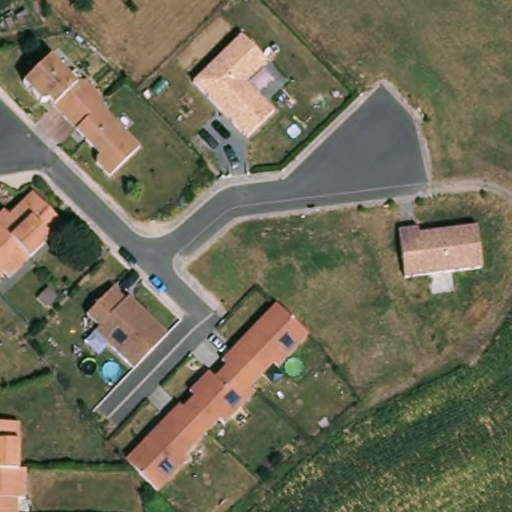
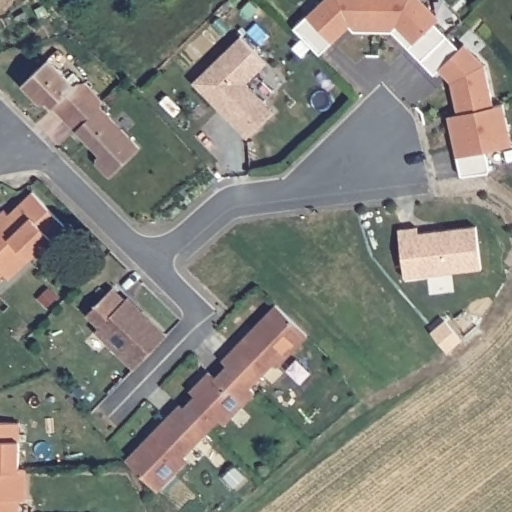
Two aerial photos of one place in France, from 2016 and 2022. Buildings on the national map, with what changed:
new [(456,114),(449,83),(438,71),(434,74),(391,31),(354,32),(348,25),(318,54),(293,29),(323,0),(423,0),(439,17),(434,21),(460,49),(466,44),(485,65),(494,105),(504,104),(512,145),(483,151),(488,171),(460,175),(447,116),(456,114)]
unchanged [(265,63),(243,84),(272,112),(245,139),(191,82),(239,36),(265,63)]
unchanged [(44,54),(70,81),(73,79),(80,79),(97,98),(96,105),(101,110),(135,146),(105,175),(91,161),(92,155),(94,153),(76,134),(42,98),(41,99),(35,99),(17,79),(44,54)]
unchanged [(65,229),(9,276),(5,270),(0,274),(0,222),(7,214),(19,216),(40,198),(65,229)]
unchanged [(398,235),(397,229),(418,227),(419,233),(476,227),(480,269),(402,278),(398,235)]
unchanged [(167,333),(132,371),(92,333),(97,328),(87,317),(111,289),(124,300),(128,295),(167,333)]
unchanged [(158,491),(125,460),(179,404),(182,408),(194,396),(191,393),(210,373),(213,376),(225,364),(221,361),(274,306),(305,338),(277,368),(272,363),(247,389),(252,394),(221,426),(216,420),(181,456),(186,462),(158,491)]
unchanged [(15,423),(12,468),(22,468),(23,501),(13,499),(12,512),(0,512),(0,422),(15,423)]

